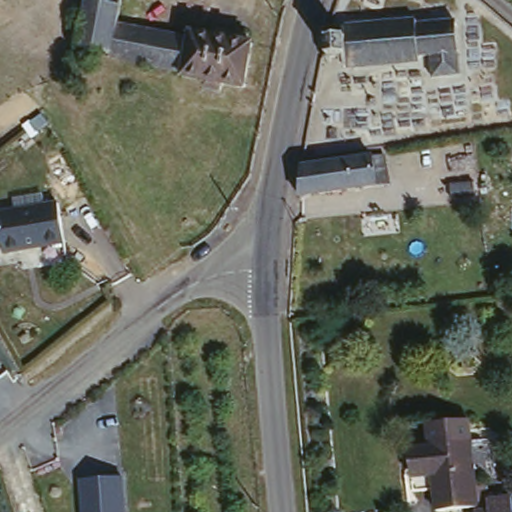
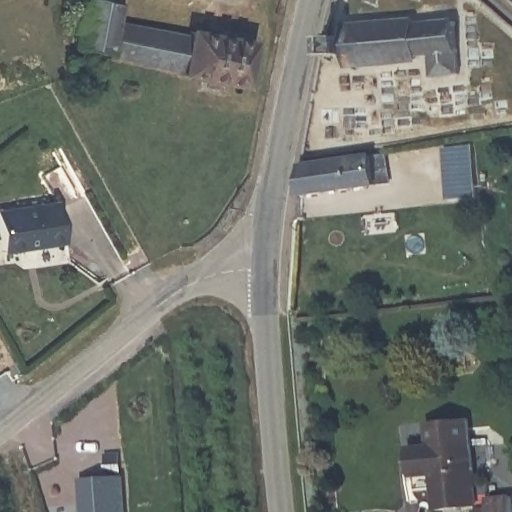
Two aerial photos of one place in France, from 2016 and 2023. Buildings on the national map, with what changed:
unchanged [(74,37),(79,0),(120,0),(119,11),(189,27),(191,21),(214,26),(215,18),(251,24),(249,32),(254,33),(246,78),(184,66),(185,59),(108,44),(74,37)]
unchanged [(460,70),(432,72),(430,53),(422,54),(422,57),(346,62),(346,55),(328,55),(328,36),(347,34),(346,26),(456,18),(460,70)]
unchanged [(300,156),(386,144),(388,173),(297,186),(300,156)]
new [(443,148),(473,146),(477,197),(447,199),(443,148)]
unchanged [(61,205),(67,244),(6,254),(0,214),(61,205)]
unchanged [(481,505),(436,510),(432,479),(415,479),(412,443),(428,442),(426,421),(472,416),(481,505)]
unchanged [(83,512),(80,480),(127,477),(131,512),(83,512)]
unchanged [(510,500),(511,512),(487,512),(486,502),(510,500)]

